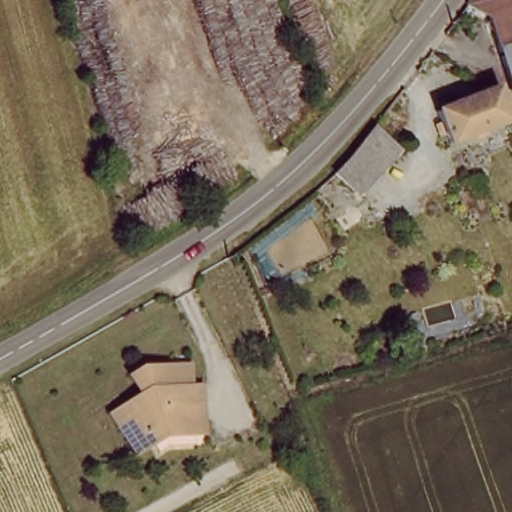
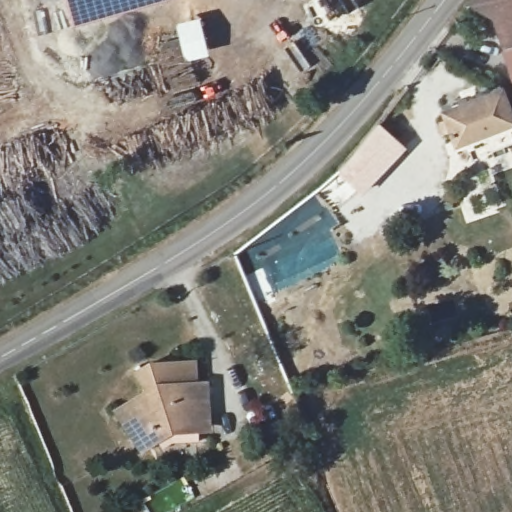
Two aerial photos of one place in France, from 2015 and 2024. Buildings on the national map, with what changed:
new [(71,25),(64,0),(161,0),(71,25)]
unchanged [(497,10),(481,0),(512,0),(512,54),(497,10)]
unchanged [(512,101),(512,117),(453,139),(443,106),(506,82),(512,101)]
unchanged [(350,152),(381,117),(406,142),(363,186),(339,162),(350,152)]
unchanged [(134,436),(110,407),(153,372),(193,375),(202,375),(203,375),(203,377),(203,413),(191,413),(160,413),(134,436)]

